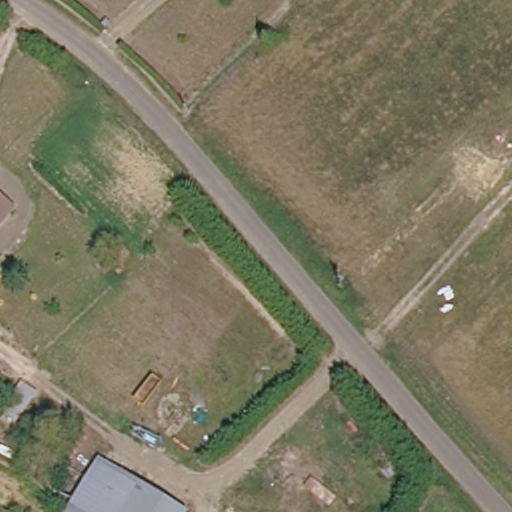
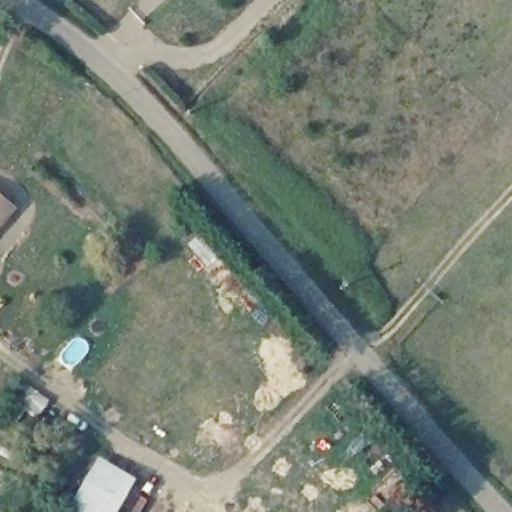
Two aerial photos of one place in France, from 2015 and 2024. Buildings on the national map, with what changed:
unchanged [(0,226),(0,193),(15,205),(0,226)]
unchanged [(73,502),(52,485),(80,442),(145,489),(131,512),(68,512),(73,502)]
unchanged [(145,489),(187,512),(131,512),(145,489)]

